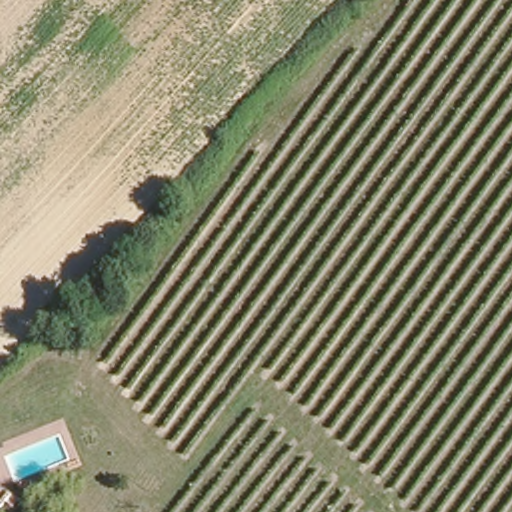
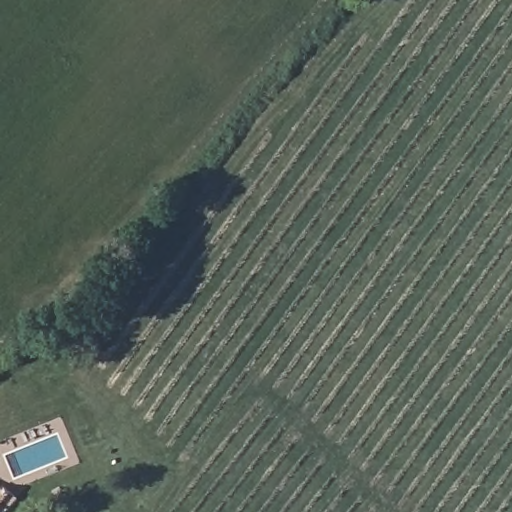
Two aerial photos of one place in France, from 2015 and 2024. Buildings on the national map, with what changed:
unchanged [(1,496),(0,495),(0,483),(7,489),(1,496)]

